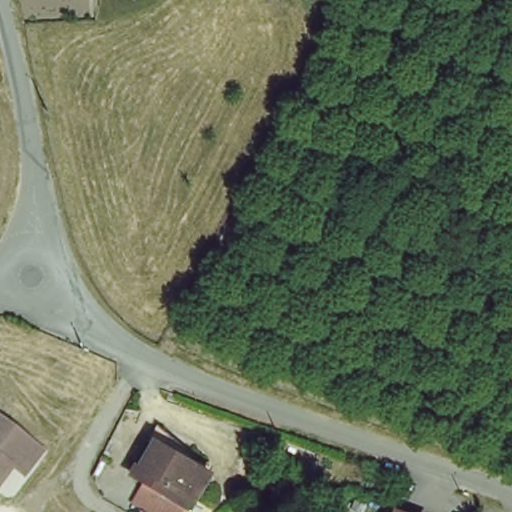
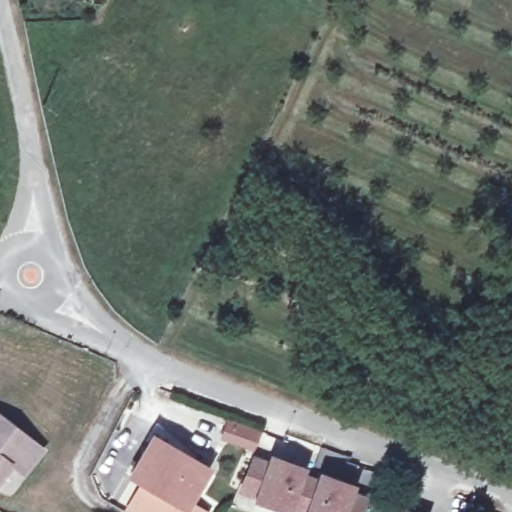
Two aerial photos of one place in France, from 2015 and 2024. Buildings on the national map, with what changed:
unchanged [(0,472),(0,419),(39,448),(20,472),(7,463),(0,472)]
unchanged [(210,468),(187,502),(183,500),(175,512),(165,512),(153,505),(136,494),(147,476),(133,467),(155,433),(179,448),(210,468)]
new [(363,512),(277,512),(251,504),(253,499),(236,493),(251,455),(267,461),(269,456),(307,468),(305,474),(317,477),(319,472),(356,485),(354,492),(368,497),(363,512)]
new [(147,476),(136,494),(153,505),(165,512),(130,512),(125,509),(136,484),(126,478),(133,467),(147,476)]
new [(183,500),(187,502),(205,512),(175,512),(183,500)]
unchanged [(395,512),(392,512),(393,511),(395,512)]

